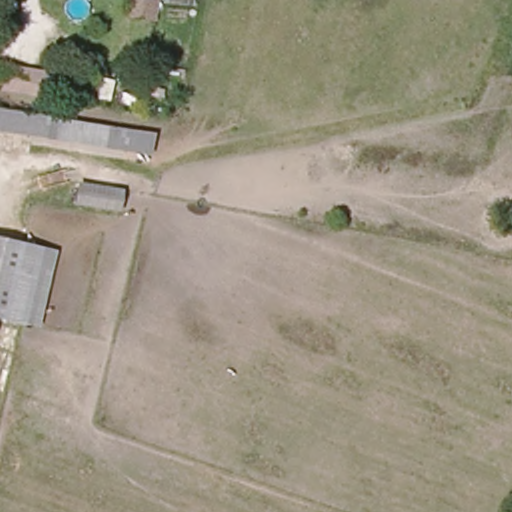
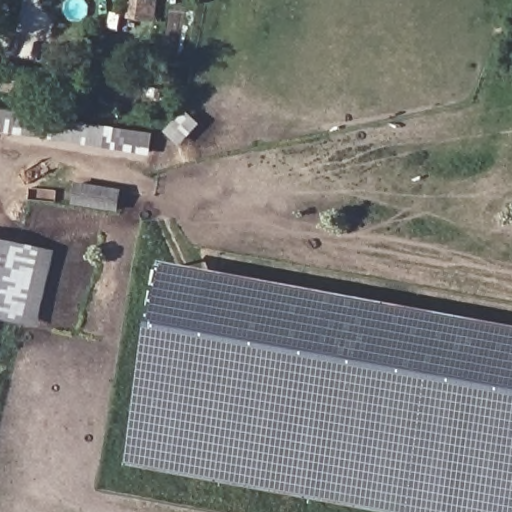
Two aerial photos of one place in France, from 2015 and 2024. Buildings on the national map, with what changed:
new [(131,0),(155,0),(153,20),(130,17),(131,0)]
new [(6,70),(48,77),(44,96),(3,90),(6,70)]
unchanged [(0,133),(0,111),(158,133),(155,156),(0,133)]
new [(76,185),(119,191),(116,209),(73,201),(76,185)]
unchanged [(0,317),(0,231),(45,240),(26,323),(0,317)]
new [(399,512),(123,461),(159,267),(512,335),(512,512),(399,512)]

